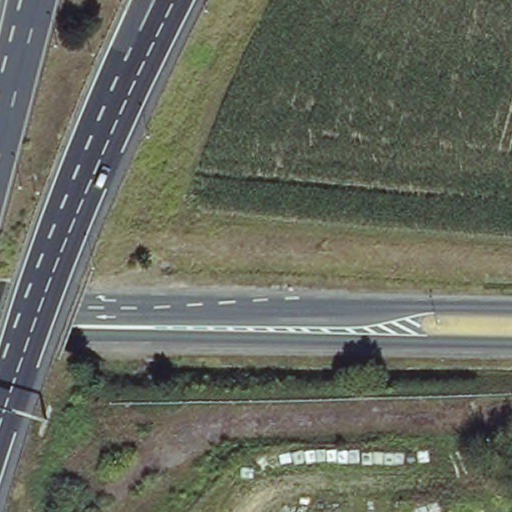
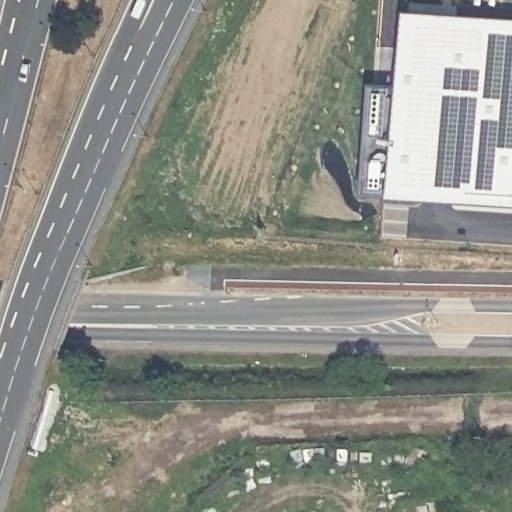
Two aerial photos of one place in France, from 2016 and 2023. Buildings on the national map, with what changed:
new [(512,22),(512,208),(368,201),(371,134),(404,134),(410,17),(512,22)]

